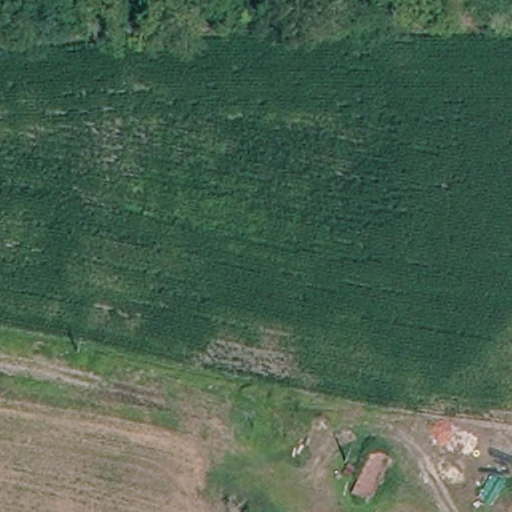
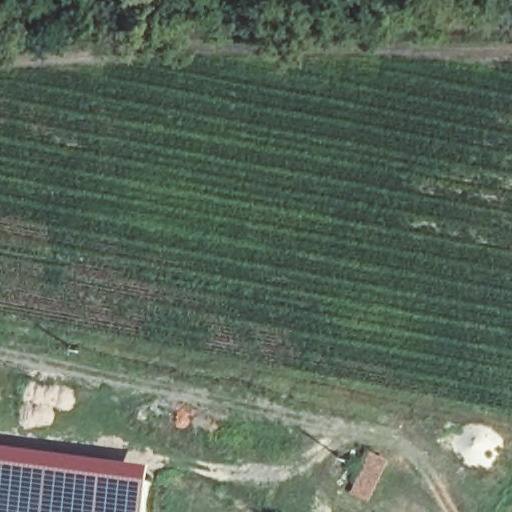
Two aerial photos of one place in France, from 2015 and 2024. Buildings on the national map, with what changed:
new [(152,466),(150,481),(0,461),(0,445),(152,466)]
new [(150,481),(146,512),(0,512),(0,461),(150,481)]
unchanged [(385,471),(375,496),(368,512),(367,512),(353,507),(360,490),(369,466),(385,471)]

